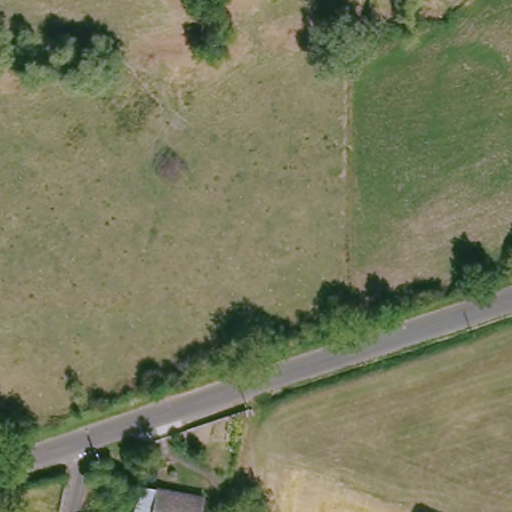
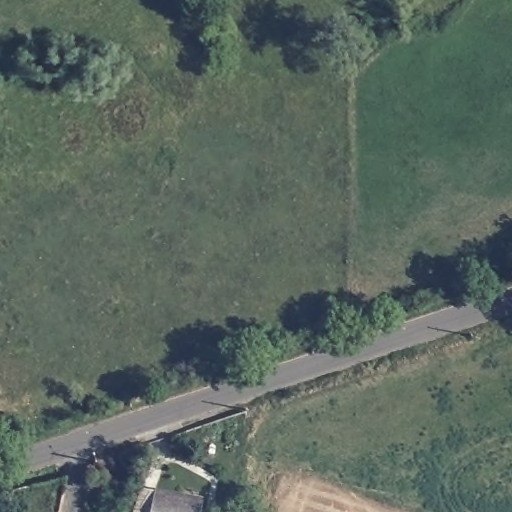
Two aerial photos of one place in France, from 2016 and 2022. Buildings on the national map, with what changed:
unchanged [(215,501),(212,512),(137,512),(142,488),(215,501)]

